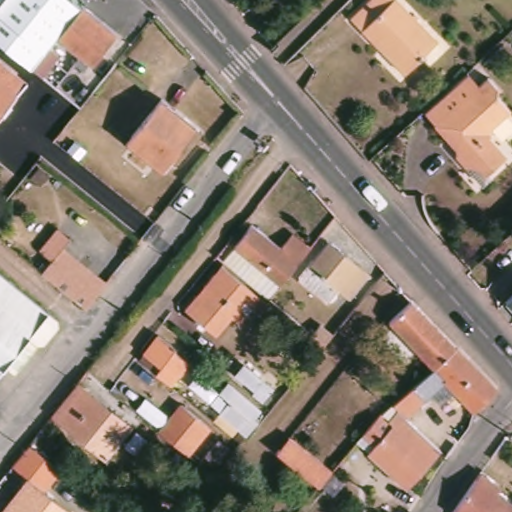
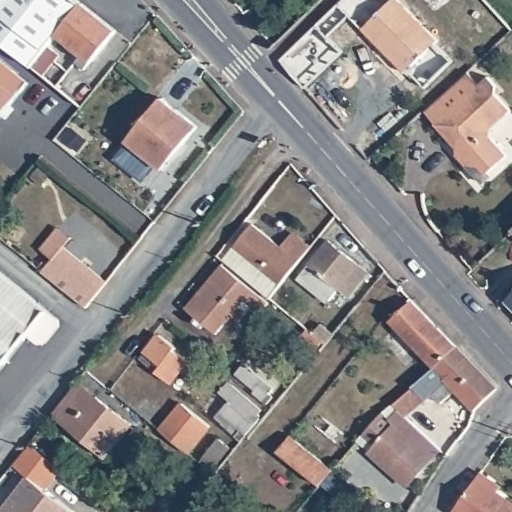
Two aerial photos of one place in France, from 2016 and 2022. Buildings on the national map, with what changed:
unchanged [(2,0),(82,0),(120,31),(90,70),(79,62),(85,55),(62,36),(53,46),(65,55),(47,77),(0,39),(0,2),(2,0)]
unchanged [(405,70),(381,45),(378,48),(350,18),(370,0),(397,0),(437,40),(405,70)]
unchanged [(31,83),(0,121),(0,57),(31,83)]
unchanged [(501,97),(512,108),(512,116),(497,130),(495,139),(511,157),(490,177),(481,166),(468,164),(460,155),(461,141),(455,135),(452,137),(429,113),(460,85),(472,73),(483,86),(492,78),(506,93),(501,97)]
unchanged [(202,127),(166,172),(130,142),(166,97),(202,127)]
unchanged [(252,225),(280,248),(292,233),(310,248),(298,263),(269,299),(236,271),(225,262),(236,249),(234,247),(252,225)]
unchanged [(60,262),(49,253),(67,230),(79,240),(71,250),(116,286),(95,312),(50,275),(60,262)]
unchanged [(368,273),(349,297),(338,288),(328,301),(298,277),(327,240),(368,273)]
unchanged [(267,303),(258,314),(244,300),(239,307),(247,313),(240,322),(232,315),(216,334),(205,325),(201,328),(194,321),(196,318),(185,308),(221,265),(267,303)]
unchanged [(62,319),(62,326),(49,344),(40,345),(31,337),(0,377),(0,268),(62,319)]
unchanged [(512,296),(512,309),(505,302),(512,296)]
unchanged [(446,361),(439,369),(393,320),(416,300),(461,347),(446,361)]
unchanged [(303,348),(307,344),(299,337),(306,329),(312,333),(320,323),(333,333),(325,343),(322,341),(311,354),(303,348)]
unchanged [(145,363),(149,358),(164,339),(180,352),(179,355),(190,365),(174,386),(160,376),(145,363)]
unchanged [(490,396),(478,411),(450,381),(429,400),(410,417),(396,404),(417,386),(439,369),(446,361),(461,347),(489,376),(490,396)]
unchanged [(275,387),(270,394),(273,396),(266,405),(252,394),(254,390),(235,374),(244,362),(275,387)]
unchanged [(261,409),(255,417),(258,420),(249,431),(240,441),(235,437),(240,431),(220,413),(229,401),(218,393),(227,381),(261,409)]
unchanged [(141,429),(115,462),(62,420),(89,387),(141,429)]
unchanged [(181,403),(209,426),(187,453),(160,430),(181,403)]
unchanged [(410,417),(412,420),(445,450),(412,486),(394,471),(374,453),(380,446),(366,436),(385,413),(396,404),(410,417)]
unchanged [(49,490),(77,512),(5,512),(32,478),(16,465),(34,443),(46,427),(64,442),(52,457),(67,468),(49,490)]
unchanged [(301,472),(276,453),(290,436),(332,471),(322,483),(319,486),(301,472)]
unchanged [(230,448),(214,468),(202,458),(219,439),(230,448)]
unchanged [(480,478),(485,471),(506,485),(501,492),(512,500),(512,512),(457,512),(480,478)]

